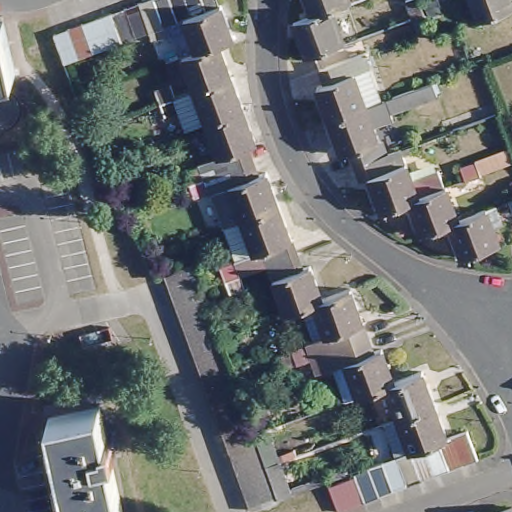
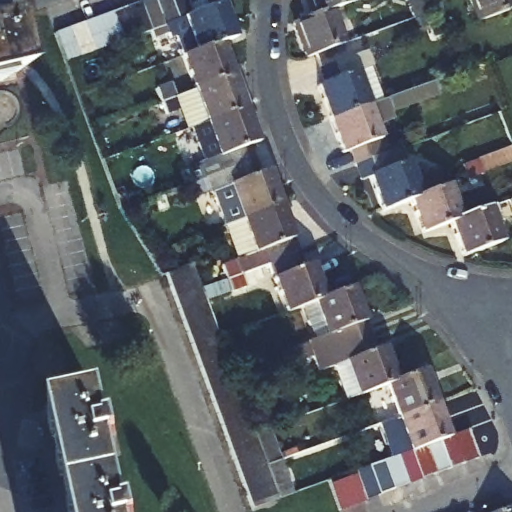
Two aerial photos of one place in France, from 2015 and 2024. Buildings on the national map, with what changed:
unchanged [(95,18),(110,13),(123,8),(138,2),(145,0),(216,0),(218,5),(220,5),(232,39),(219,43),(218,44),(180,57),(171,37),(140,47),(136,35),(133,36),(119,41),(105,46),(91,51),(76,56),(63,61),(52,34),(67,29),(81,23),(95,18)]
unchanged [(349,0),(350,1),(330,7),(310,16),(305,0),(349,0)]
unchanged [(512,0),(512,9),(477,22),(469,0),(512,0)]
unchanged [(343,44),(314,54),(305,57),(302,48),(292,22),(310,16),(330,7),(343,44)]
unchanged [(1,22),(12,74),(0,77),(0,22),(1,22)]
unchanged [(152,91),(187,78),(180,57),(218,44),(230,77),(156,103),(152,91)]
unchanged [(372,104),(328,121),(322,104),(316,87),(325,85),(320,69),(355,56),(372,104)]
unchanged [(183,131),(175,110),(160,115),(156,103),(230,77),(242,110),(204,124),(183,131)]
unchanged [(413,104),(415,106),(399,111),(400,114),(378,120),(390,152),(355,166),(354,165),(350,151),(340,155),(328,121),(372,104),(431,82),(437,96),(413,104)]
unchanged [(242,110),(255,144),(246,147),(252,162),(185,186),(181,172),(196,167),(195,162),(215,156),(204,124),(242,110)]
unchanged [(410,201),(396,205),(380,211),(368,178),(360,181),(355,166),(390,152),(400,149),(411,181),(437,172),(443,189),(410,201)]
unchanged [(512,153),(512,170),(468,186),(463,170),(512,153)]
unchanged [(210,197),(208,197),(207,194),(190,200),(185,186),(252,162),(257,176),(265,174),(277,207),(221,227),(210,197)]
unchanged [(420,234),(410,201),(443,189),(446,187),(457,220),(448,223),(420,234)]
unchanged [(512,215),(511,216),(506,202),(512,199),(512,215)]
unchanged [(228,293),(223,281),(218,266),(233,261),(221,227),(277,207),(296,255),(267,265),(239,275),(244,287),(228,293)]
unchanged [(492,207),(498,222),(490,224),(497,242),(460,257),(448,223),(457,220),(492,207)]
unchanged [(296,255),(301,268),(302,268),(311,265),(322,298),(313,301),(285,312),(267,265),(296,255)]
unchanged [(191,347),(187,335),(182,323),(178,312),(174,301),(169,287),(164,276),(192,265),(196,277),(201,288),(201,290),(206,302),(210,313),(215,325),(215,326),(218,336),(223,349),(228,360),(232,372),(235,380),(237,383),(237,385),(237,386),(241,396),(245,407),(250,418),(255,430),(255,432),(270,427),(281,461),(293,494),(280,499),(255,508),(250,499),(246,487),(241,476),(237,464),(232,452),(227,440),(223,428),(218,417),(215,406),(210,394),(205,382),(200,371),(196,360),(191,347)]
unchanged [(350,288),(350,287),(369,338),(341,348),(340,349),(331,327),(323,330),(313,301),(322,298),(350,288)]
unchanged [(334,367),(346,362),(341,348),(369,338),(374,353),(383,350),(395,383),(387,386),(350,400),(346,401),(334,367)]
unchanged [(303,377),(298,363),(294,350),(309,345),(313,358),(319,372),(303,377)]
unchanged [(387,386),(395,383),(425,373),(437,407),(400,420),(387,386)]
unchanged [(48,417),(96,406),(105,438),(110,437),(114,453),(108,454),(122,512),(71,512),(48,417)]
unchanged [(371,467),(386,462),(398,457),(386,425),(400,420),(437,407),(449,441),(455,438),(470,433),(480,461),(465,466),(450,471),(437,476),(421,481),(408,486),(395,490),(381,495),(366,500),(351,506),(337,510),(328,482),(342,477),(357,472),(361,471),(371,467)]
unchanged [(507,508),(509,512),(497,512),(507,508)]

